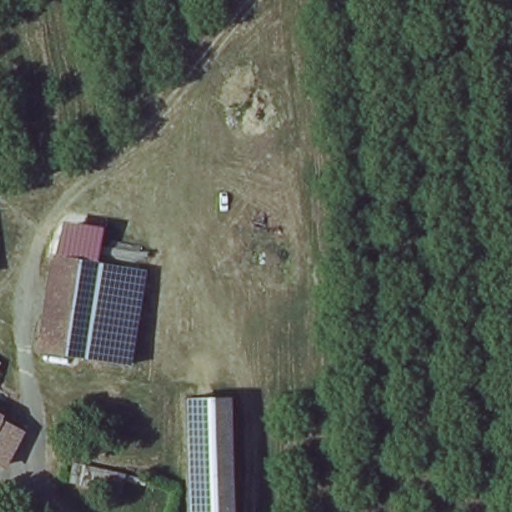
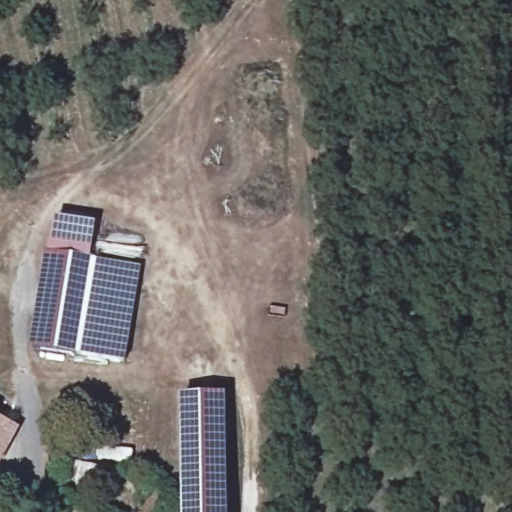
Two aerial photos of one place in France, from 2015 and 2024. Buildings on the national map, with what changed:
unchanged [(77,358),(77,377),(35,369),(34,350),(42,255),(47,242),(119,249),(117,263),(135,267),(125,362),(77,358)]
unchanged [(8,394),(0,415),(0,390),(8,394)]
unchanged [(230,512),(183,512),(181,399),(225,396),(230,512)]
unchanged [(24,431),(8,468),(0,465),(0,420),(24,431)]

